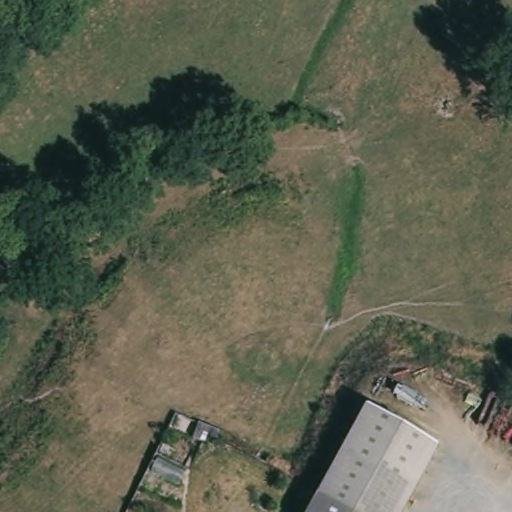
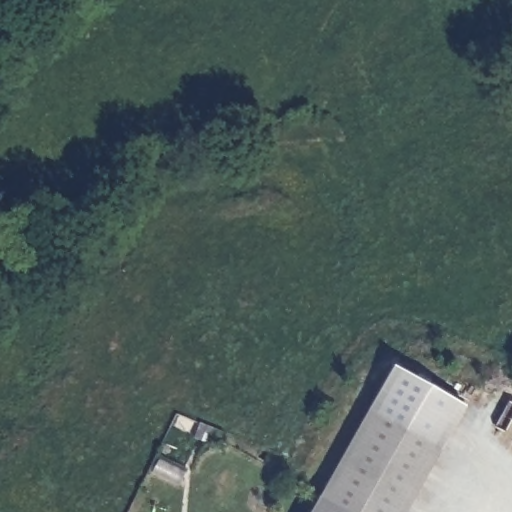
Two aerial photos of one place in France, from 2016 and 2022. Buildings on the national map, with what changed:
new [(365,411),(391,365),(461,404),(438,449),(365,411)]
unchanged [(365,411),(438,449),(402,512),(343,512),(318,498),(365,411)]
unchanged [(215,447),(193,438),(199,423),(199,422),(223,432),(215,447)]
unchanged [(318,498),(323,501),(343,512),(310,512),(318,498)]

